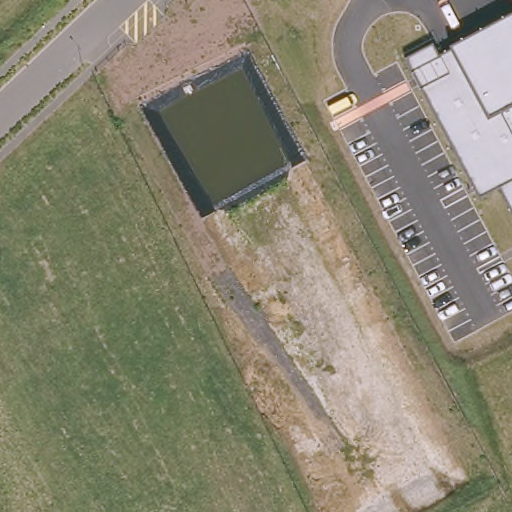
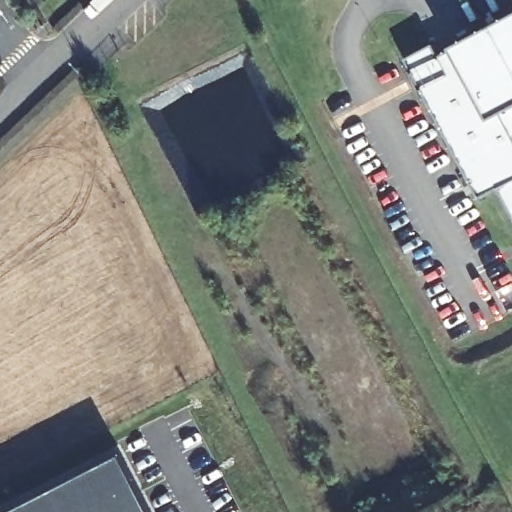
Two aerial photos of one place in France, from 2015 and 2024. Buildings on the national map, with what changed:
unchanged [(452,45),(512,14),(512,209),(500,185),(478,196),(406,58),(433,44),(438,55),(452,45)]
new [(120,455),(149,512),(2,512),(120,455)]

